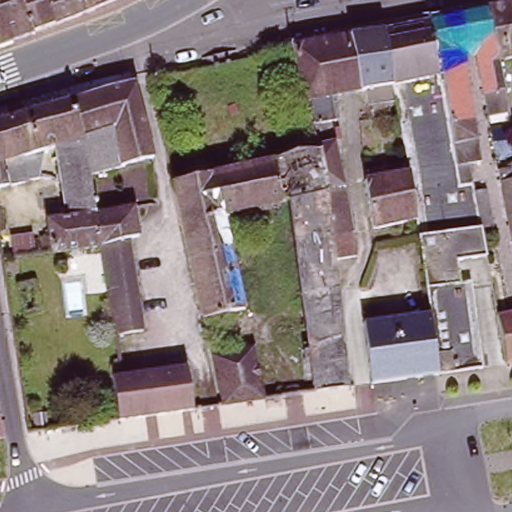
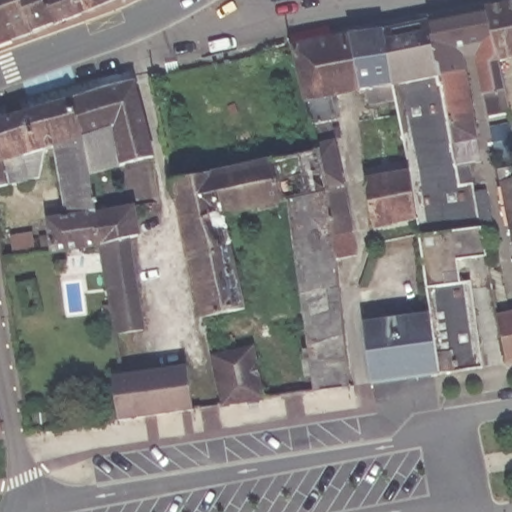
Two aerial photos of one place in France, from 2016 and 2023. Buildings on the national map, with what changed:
unchanged [(53,24),(33,31),(17,38),(13,39),(0,44),(0,0),(76,0),(82,12),(53,24)]
unchanged [(76,0),(111,0),(82,12),(76,0)]
unchanged [(497,59),(485,7),(512,2),(512,57),(499,59),(497,59)]
unchanged [(481,160),(470,163),(473,182),(460,183),(428,19),(485,7),(497,59),(499,59),(505,89),(509,112),(488,114),(475,54),(461,58),(481,160)]
unchanged [(416,217),(410,172),(395,99),(370,103),(367,88),(357,89),(342,92),(325,95),(333,138),(315,141),(306,98),(304,99),(292,45),(331,37),(346,34),(385,29),(428,19),(460,183),(473,182),(487,255),(486,255),(457,259),(460,282),(471,280),(483,367),(440,374),(439,373),(430,314),(418,232),(416,217)]
unchanged [(115,338),(114,329),(112,318),(110,319),(106,319),(105,309),(108,309),(110,308),(110,301),(108,292),(109,291),(101,248),(97,249),(72,103),(106,93),(131,86),(134,86),(153,161),(90,176),(94,200),(96,200),(97,204),(95,204),(96,214),(134,209),(139,239),(123,244),(125,259),(131,259),(138,297),(142,324),(143,333),(115,338)]
unchanged [(40,181),(28,184),(0,190),(0,125),(72,103),(97,249),(41,256),(40,239),(50,238),(47,223),(67,220),(55,149),(45,153),(40,181)]
unchanged [(317,149),(316,144),(333,140),(343,182),(353,230),(351,230),(356,254),(335,259),(327,190),(317,149)]
unchanged [(245,308),(202,318),(200,309),(195,284),(172,182),(317,149),(327,190),(335,259),(337,269),(350,386),(315,391),(288,200),(226,214),(226,215),(224,216),(245,308)]
unchanged [(365,179),(410,172),(416,217),(372,227),(365,179)]
unchanged [(512,188),(512,240),(502,189),(512,188)]
unchanged [(31,237),(35,257),(14,260),(11,240),(31,237)]
unchanged [(439,373),(371,383),(363,323),(430,314),(439,373)]
unchanged [(496,320),(512,317),(512,367),(505,369),(496,320)]
unchanged [(222,404),(210,354),(253,345),(259,372),(277,368),(284,396),(222,404)]
unchanged [(186,366),(193,409),(127,418),(119,419),(112,376),(120,375),(186,366)]
unchanged [(2,441),(0,441),(0,429),(2,441)]

